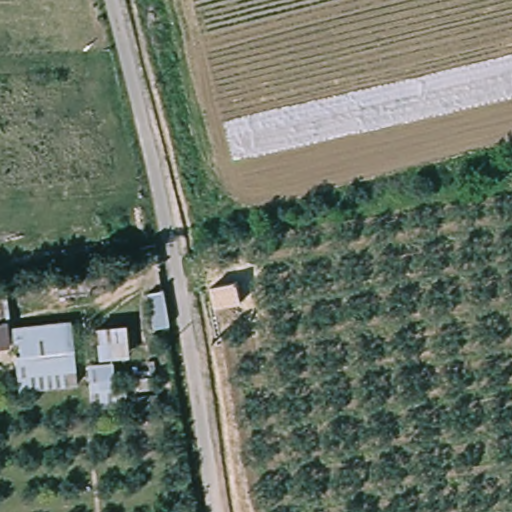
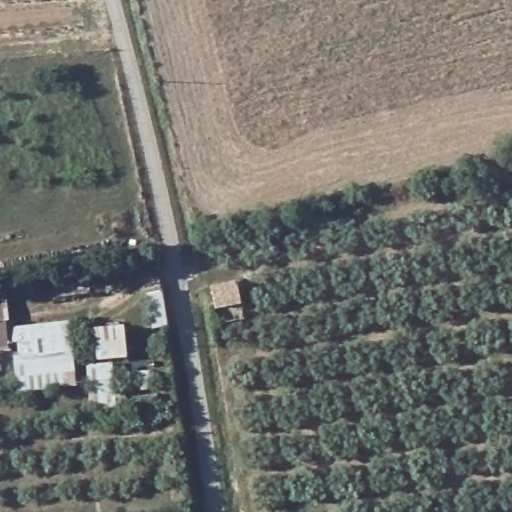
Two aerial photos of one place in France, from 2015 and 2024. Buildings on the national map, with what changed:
unchanged [(5,288),(7,323),(9,342),(5,342),(0,342),(0,288),(5,288)]
unchanged [(9,342),(7,323),(73,318),(75,345),(71,346),(32,350),(21,351),(20,341),(9,342)]
unchanged [(126,325),(131,359),(96,361),(93,326),(126,325)]
unchanged [(32,350),(71,346),(75,382),(24,387),(21,351),(32,350)]
unchanged [(111,366),(116,404),(95,407),(91,368),(111,366)]
unchanged [(155,392),(160,407),(140,410),(135,395),(155,392)]

